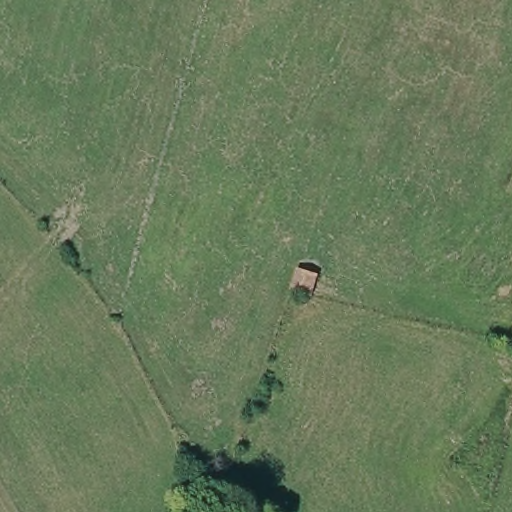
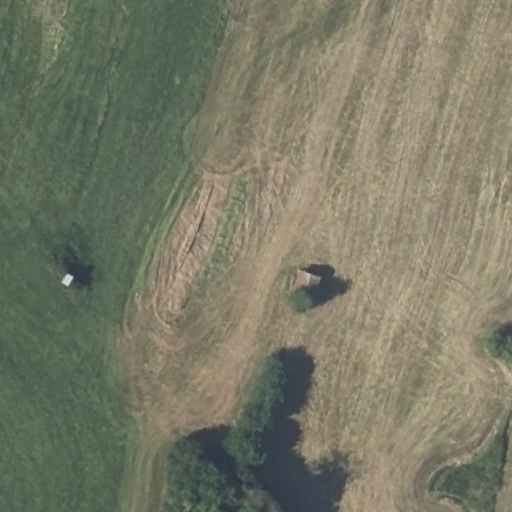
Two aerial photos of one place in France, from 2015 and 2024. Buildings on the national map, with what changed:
unchanged [(294,270),(318,276),(309,301),(287,294),(294,270)]

